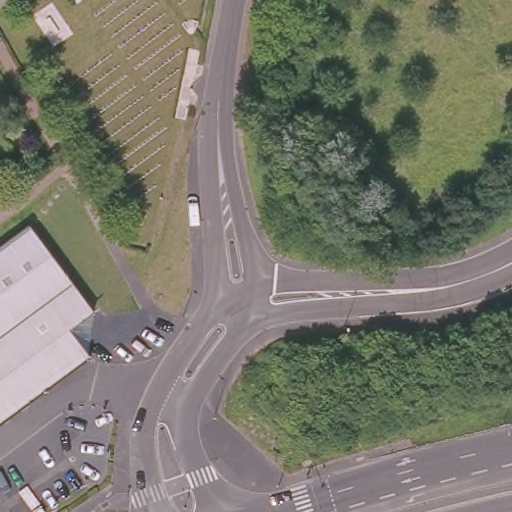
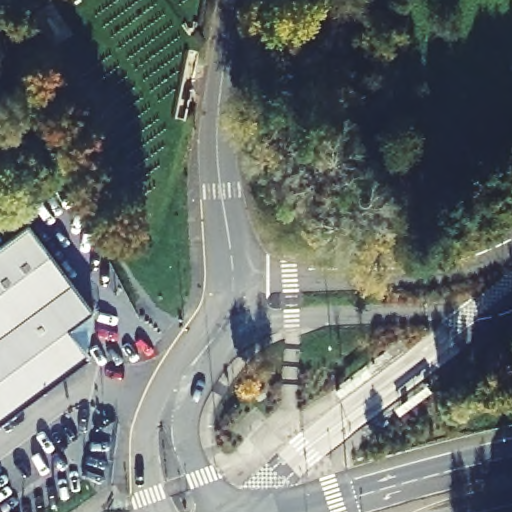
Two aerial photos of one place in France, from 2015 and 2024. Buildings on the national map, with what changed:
unchanged [(5,0),(0,3),(0,0),(5,0)]
unchanged [(0,425),(0,243),(30,220),(96,308),(73,326),(82,339),(92,353),(53,384),(0,425)]

